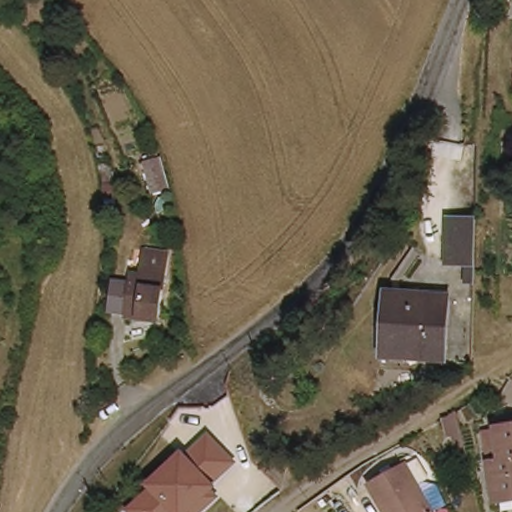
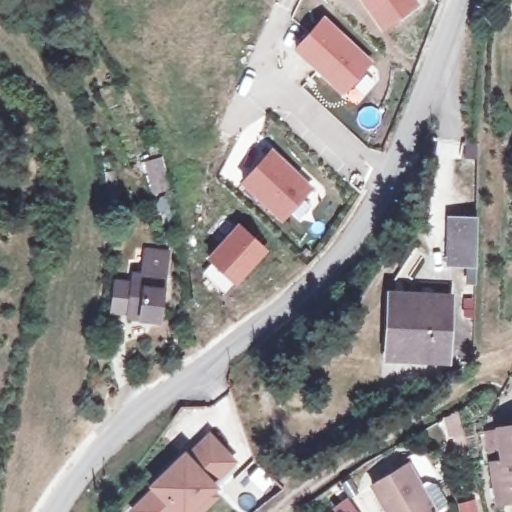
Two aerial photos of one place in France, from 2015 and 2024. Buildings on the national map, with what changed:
new [(364,0),(386,0),(371,10),(364,0)]
new [(324,14),(376,64),(374,65),(379,79),(356,106),(293,49),(324,14)]
new [(240,183),(272,148),(314,188),(281,222),(240,183)]
unchanged [(175,182),(155,187),(148,157),(165,152),(175,182)]
unchanged [(446,265),(446,217),(474,218),(474,263),(446,265)]
new [(233,228),(259,254),(228,285),(203,259),(233,228)]
unchanged [(136,323),(134,278),(141,278),(139,253),(161,251),(163,322),(136,323)]
unchanged [(136,323),(125,324),(125,317),(110,316),(113,281),(134,278),(135,314),(136,323)]
unchanged [(451,296),(449,359),(383,358),(386,294),(451,296)]
new [(477,406),(488,457),(478,461),(468,411),(477,406)]
unchanged [(498,506),(494,466),(504,465),(501,431),(512,429),(512,504),(498,506)]
unchanged [(216,483),(218,486),(214,492),(221,499),(206,512),(130,512),(128,511),(151,490),(148,486),(184,449),(189,455),(210,433),(238,462),(216,483)]
unchanged [(426,512),(382,512),(368,487),(403,469),(426,512)]

